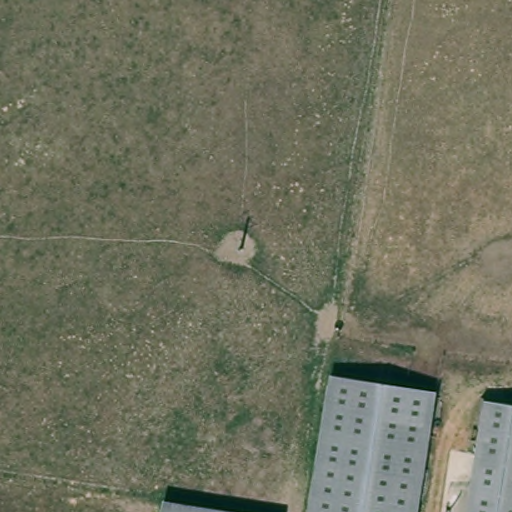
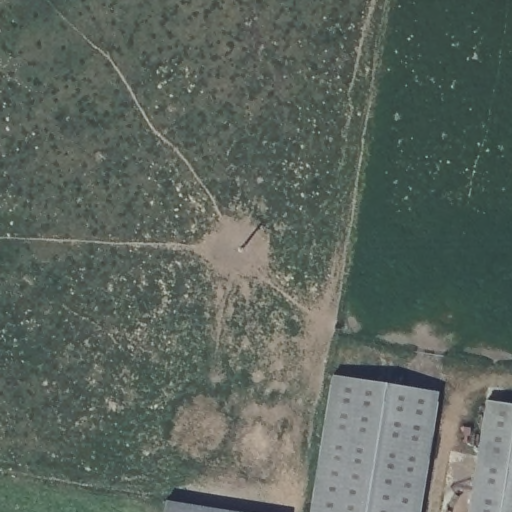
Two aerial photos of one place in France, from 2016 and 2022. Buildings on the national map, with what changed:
unchanged [(422,512),(314,512),(334,375),(441,391),(422,512)]
unchanged [(487,401),(512,405),(512,512),(470,512),(487,401)]
unchanged [(249,512),(164,512),(166,499),(249,512)]

